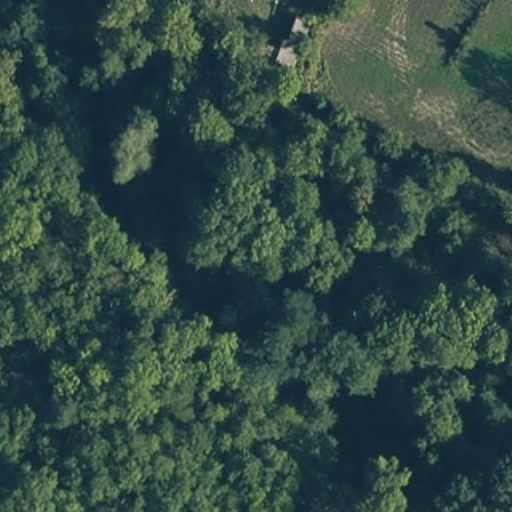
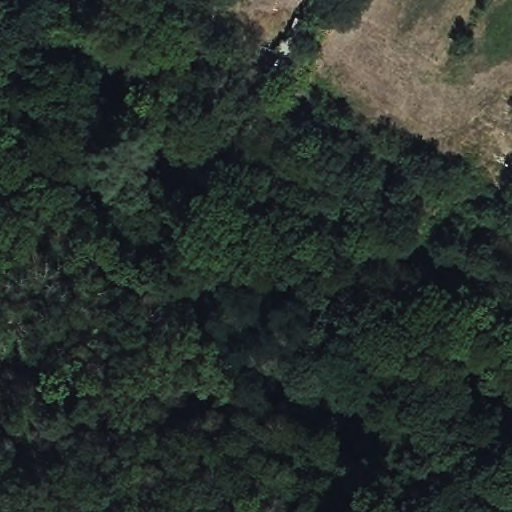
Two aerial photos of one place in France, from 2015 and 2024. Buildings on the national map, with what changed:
unchanged [(281,37),(290,40),(296,18),(311,22),(292,75),(272,66),(281,37)]

